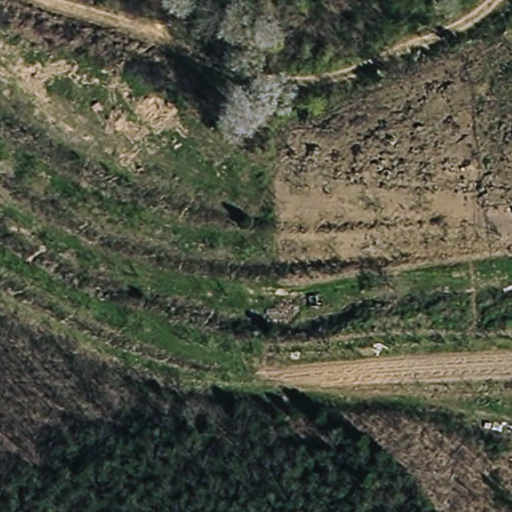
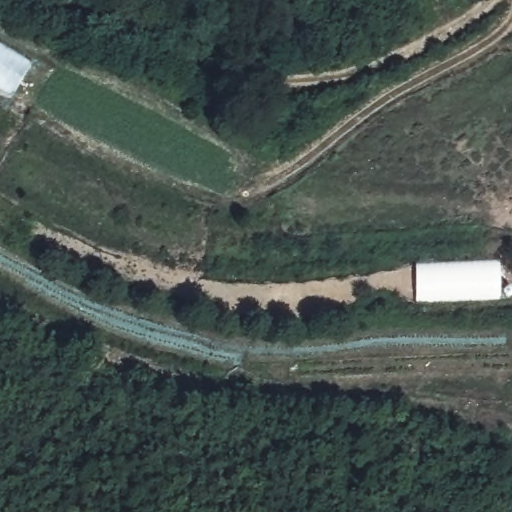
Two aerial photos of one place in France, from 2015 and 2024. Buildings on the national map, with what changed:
new [(0,82),(0,45),(31,63),(14,90),(0,82)]
new [(499,300),(415,303),(415,262),(499,261),(499,300)]

